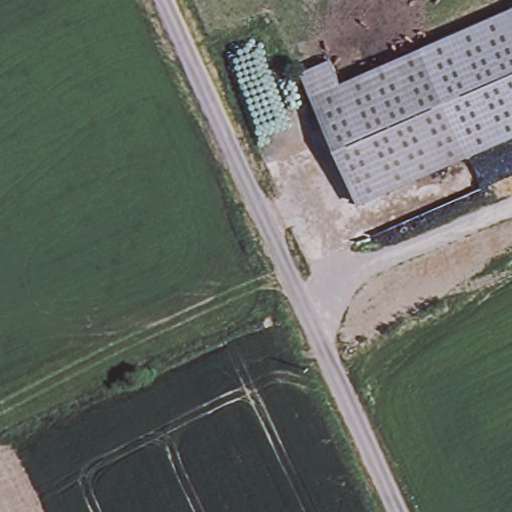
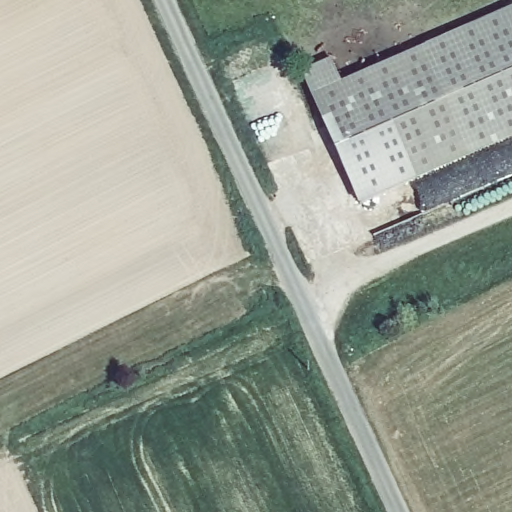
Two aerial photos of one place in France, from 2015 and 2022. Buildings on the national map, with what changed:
unchanged [(470,138),(429,45),(512,9),(512,137),(477,152),(470,138)]
unchanged [(337,58),(347,81),(429,45),(470,138),(362,191),(308,70),(337,58)]
unchanged [(512,176),(490,185),(477,152),(512,137),(512,176)]
unchanged [(477,152),(365,200),(362,191),(470,138),(477,152)]

